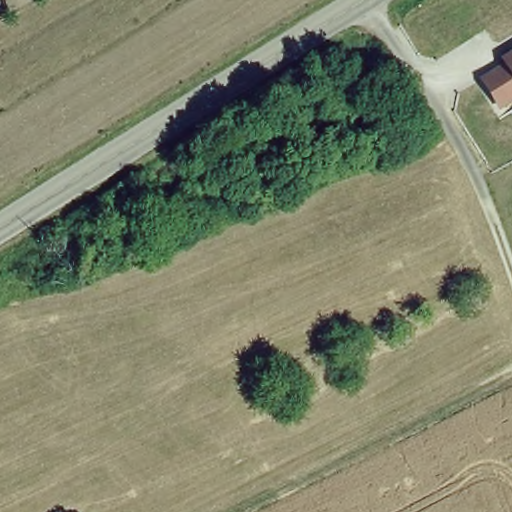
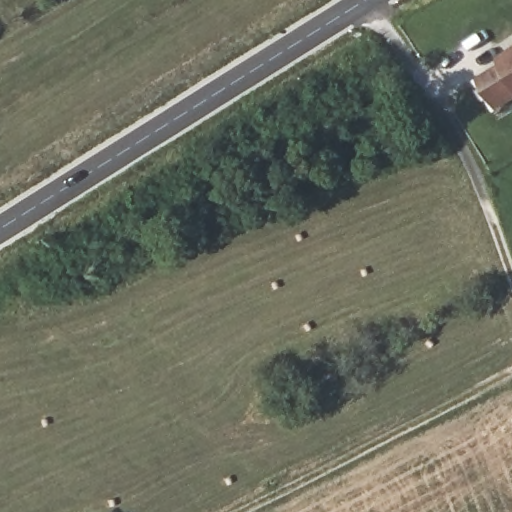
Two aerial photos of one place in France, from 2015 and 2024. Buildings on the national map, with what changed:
unchanged [(477,81),(505,68),(500,61),(512,53),(512,106),(500,113),(477,81)]

